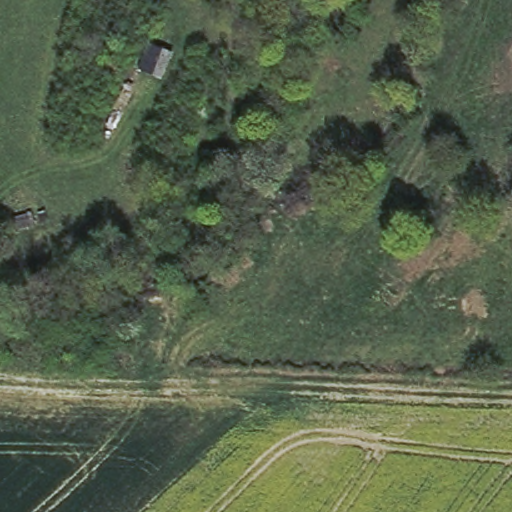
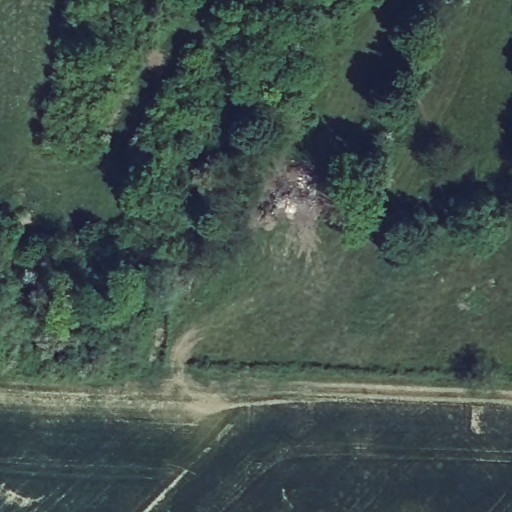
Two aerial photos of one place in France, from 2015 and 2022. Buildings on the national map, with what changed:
unchanged [(139,66),(148,40),(175,50),(164,76),(139,66)]

